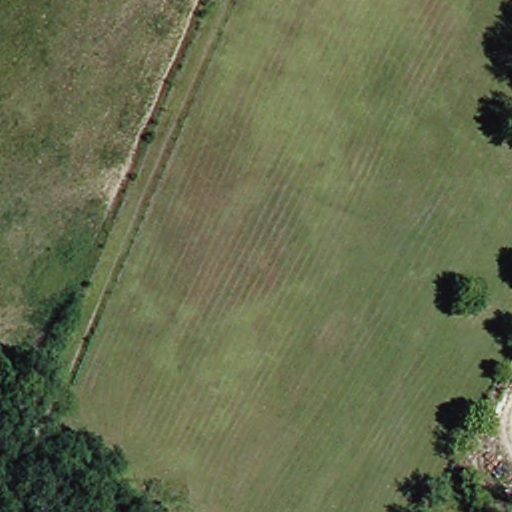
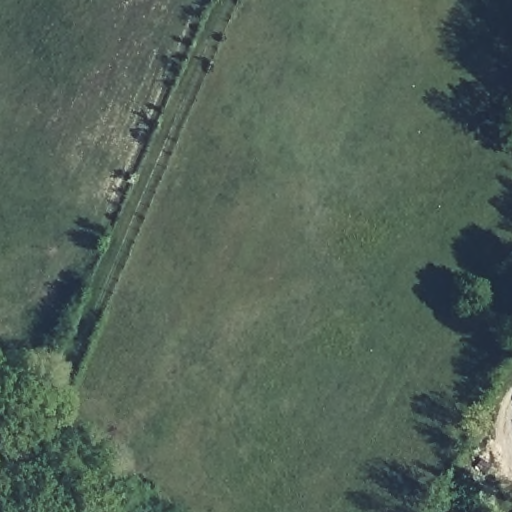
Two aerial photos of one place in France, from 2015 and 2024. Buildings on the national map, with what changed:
[]

